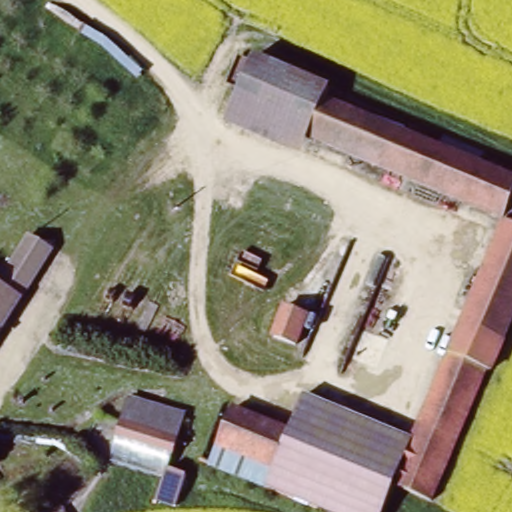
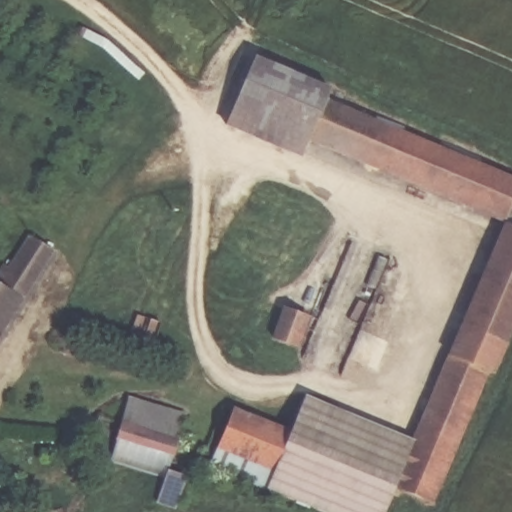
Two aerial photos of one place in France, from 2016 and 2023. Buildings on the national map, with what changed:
unchanged [(238,402),(300,425),(311,389),(417,436),(507,217),(313,136),(306,156),(227,123),(257,52),(336,87),(331,92),(512,170),(512,346),(501,375),(491,368),(437,502),(398,486),(388,512),(332,512),(214,463),(238,402)]
unchanged [(0,340),(0,276),(2,276),(26,246),(52,267),(0,340)]
unchanged [(290,302),(318,313),(304,344),(276,332),(290,302)]
unchanged [(184,437),(133,416),(142,393),(195,412),(184,437)]
unchanged [(119,453),(133,416),(184,437),(169,473),(119,453)]

